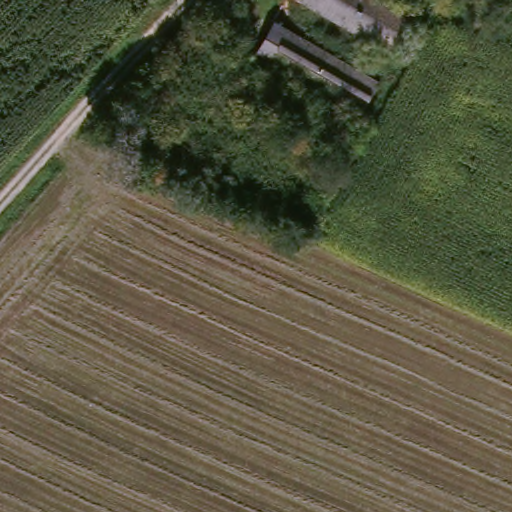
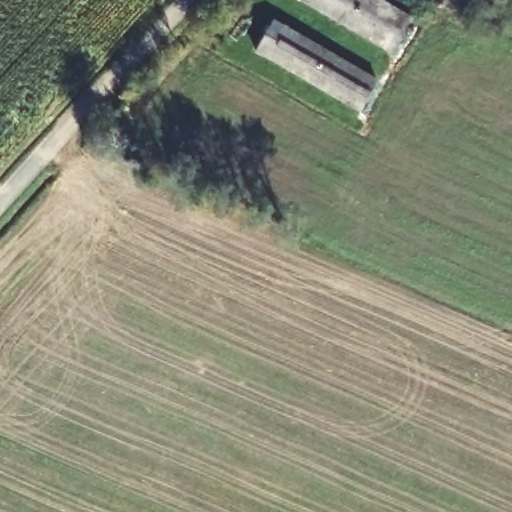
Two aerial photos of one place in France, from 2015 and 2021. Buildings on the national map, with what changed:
unchanged [(415,15),(394,51),(305,0),(388,0),(415,15)]
unchanged [(384,81),(366,109),(259,51),(279,21),(384,81)]

